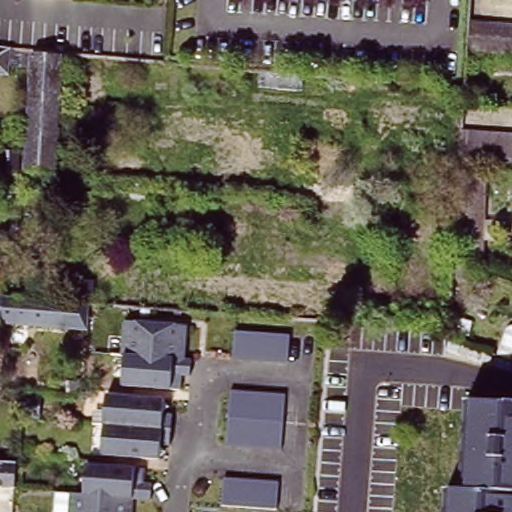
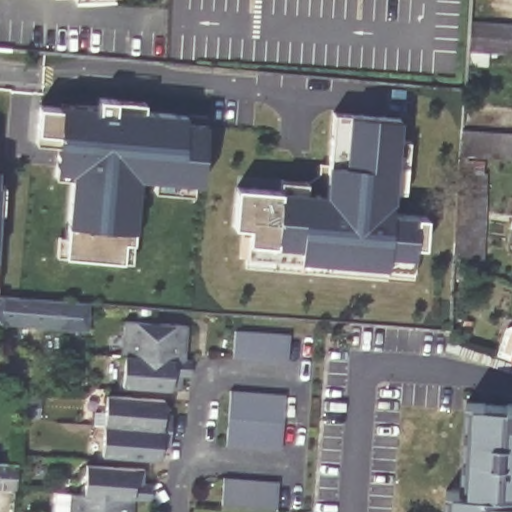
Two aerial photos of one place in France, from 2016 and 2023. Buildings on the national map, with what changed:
unchanged [(471,53),(473,27),(512,30),(512,57),(471,54),(471,53)]
demolished [(0,72),(0,49),(15,50),(13,73),(0,72)]
demolished [(31,58),(61,61),(57,180),(26,178),(30,58),(31,58)]
new [(144,110),(187,114),(208,116),(206,121),(201,182),(137,176),(133,229),(133,243),(123,242),(121,260),(64,255),(66,222),(70,177),(55,176),(55,169),(57,144),(34,143),(35,132),(37,104),(61,106),(61,101),(97,104),(98,96),(116,98),(145,100),(144,110)]
new [(245,254),(245,243),(246,226),(232,225),(235,184),(278,187),(280,178),(308,180),(320,171),(320,160),(326,161),(331,112),(347,114),(398,119),(397,139),(411,140),(405,213),(427,215),(423,244),(413,243),(412,256),(412,267),(412,275),(411,281),(245,264),(245,254)]
unchanged [(461,132),(512,137),(512,162),(459,158),(461,132)]
demolished [(0,169),(0,155),(18,156),(20,178),(0,176),(0,169)]
new [(480,265),(451,264),(458,166),(487,168),(480,265)]
demolished [(475,201),(473,212),(463,212),(464,200),(475,201)]
demolished [(2,298),(0,298),(0,275),(5,275),(2,298)]
unchanged [(90,305),(87,330),(0,324),(0,307),(0,298),(2,298),(15,299),(67,303),(90,305)]
unchanged [(181,360),(126,355),(121,355),(121,347),(123,320),(144,321),(183,325),(181,360)]
unchanged [(292,360),(235,355),(235,328),(294,333),(292,360)]
unchanged [(193,361),(192,376),(185,375),(184,388),(125,383),(126,355),(181,360),(193,361)]
unchanged [(160,406),(169,408),(167,441),(159,441),(158,456),(99,451),(103,389),(162,393),(160,406)]
unchanged [(280,447),(223,443),(227,389),(285,394),(280,447)]
unchanged [(463,469),(466,406),(512,408),(512,472),(463,469)]
unchanged [(71,491),(82,492),(83,469),(85,461),(143,466),(142,481),(149,481),(147,497),(132,496),(130,512),(69,512),(71,491)]
unchanged [(0,466),(16,467),(16,476),(15,492),(0,491),(0,466)]
unchanged [(442,494),(462,494),(463,469),(512,472),(512,512),(442,512),(442,494)]
unchanged [(276,507),(219,503),(221,474),(278,478),(276,507)]

